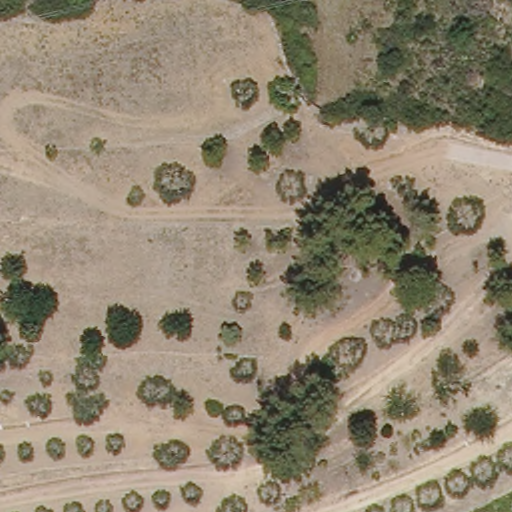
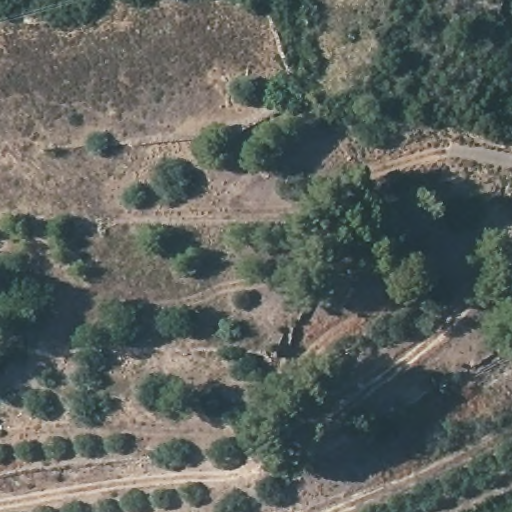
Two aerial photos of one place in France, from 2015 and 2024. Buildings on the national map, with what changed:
unchanged [(335,235),(322,241),(316,226),(329,220),(335,235)]

